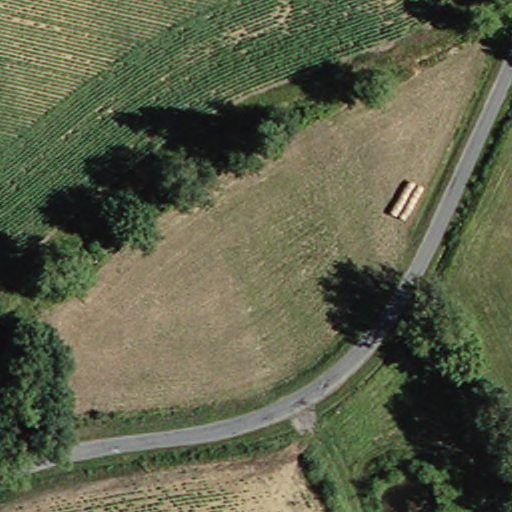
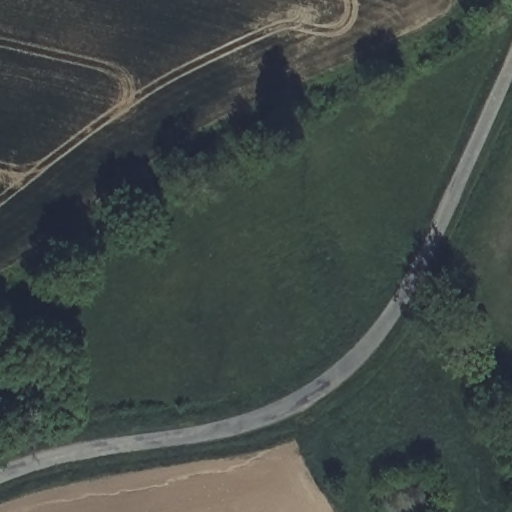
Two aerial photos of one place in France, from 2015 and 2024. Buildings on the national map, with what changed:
[]

